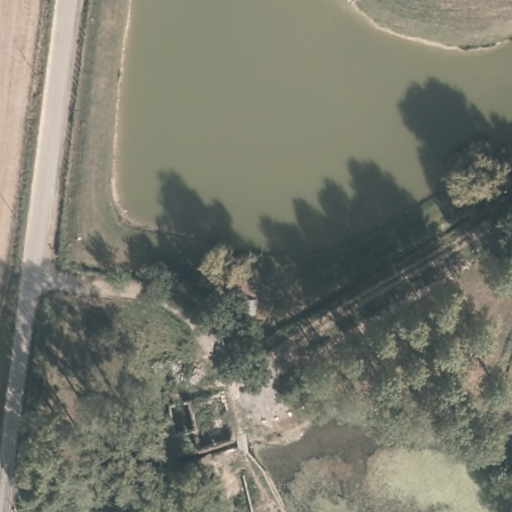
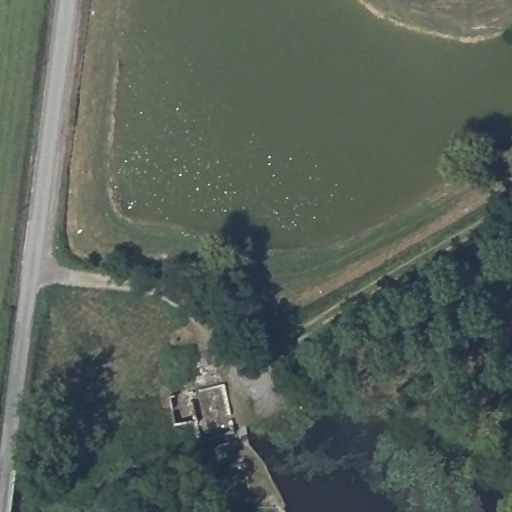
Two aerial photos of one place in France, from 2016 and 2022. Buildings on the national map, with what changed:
unchanged [(193,423),(176,426),(170,399),(227,386),(236,433),(197,443),(193,423)]

